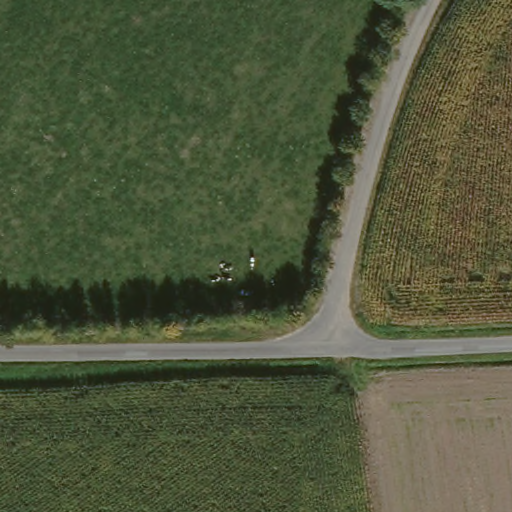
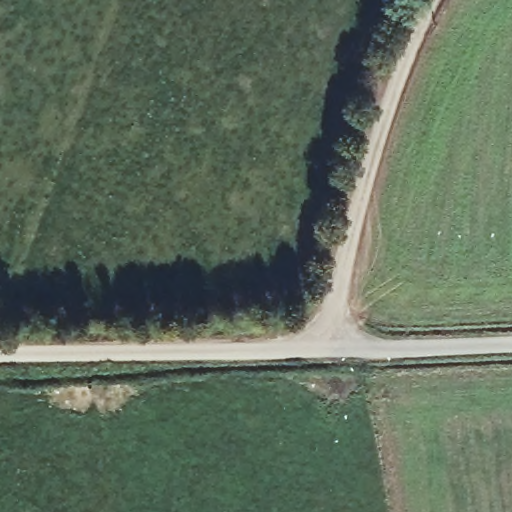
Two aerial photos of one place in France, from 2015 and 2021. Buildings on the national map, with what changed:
[]

